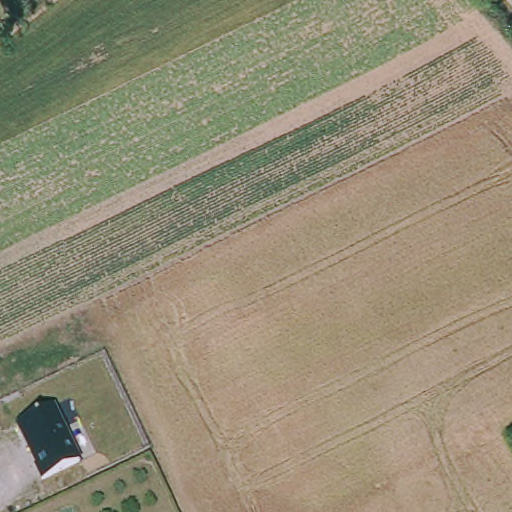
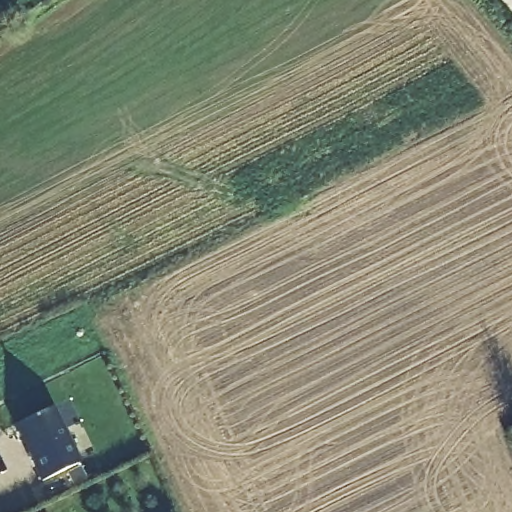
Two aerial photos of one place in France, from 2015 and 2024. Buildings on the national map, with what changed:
unchanged [(85,461),(42,483),(15,426),(56,406),(85,461)]

